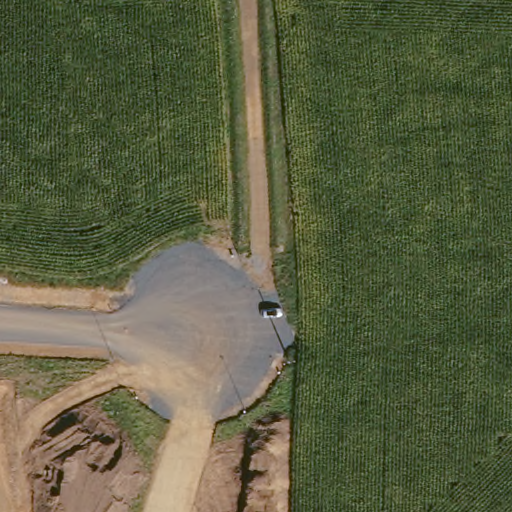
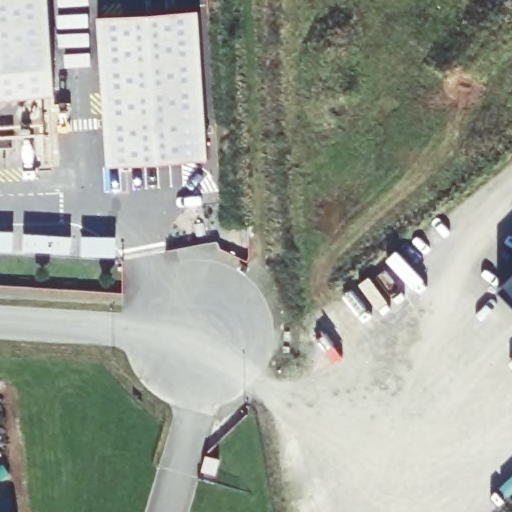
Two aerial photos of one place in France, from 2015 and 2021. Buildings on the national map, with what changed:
new [(53,67),(0,70),(0,0),(49,0),(53,67)]
new [(199,11),(208,160),(107,166),(99,19),(199,11)]
new [(512,277),(512,308),(496,293),(512,277)]

